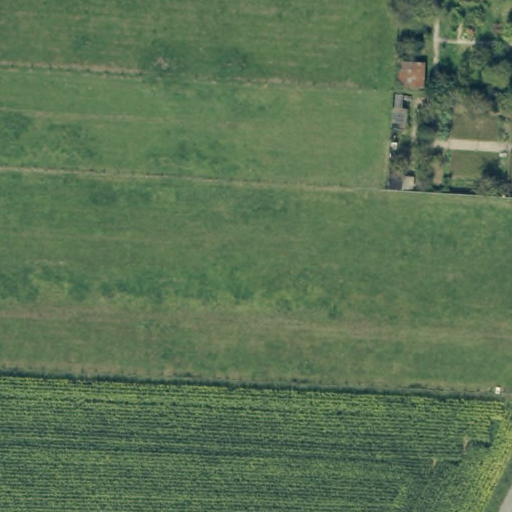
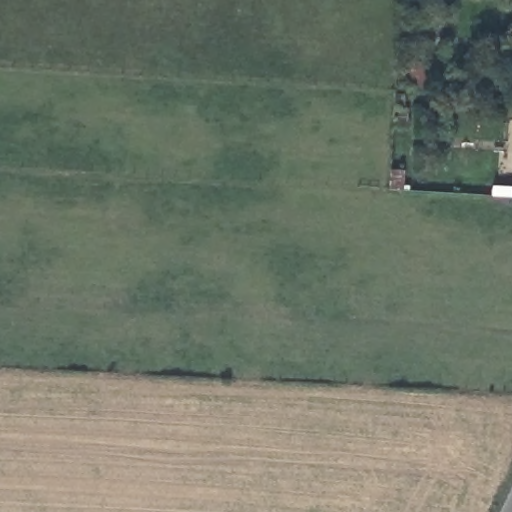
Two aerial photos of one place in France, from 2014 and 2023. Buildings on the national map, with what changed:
unchanged [(421,62),(420,84),(395,82),(396,61),(421,62)]
unchanged [(401,171),(400,191),(387,190),(388,170),(401,171)]

